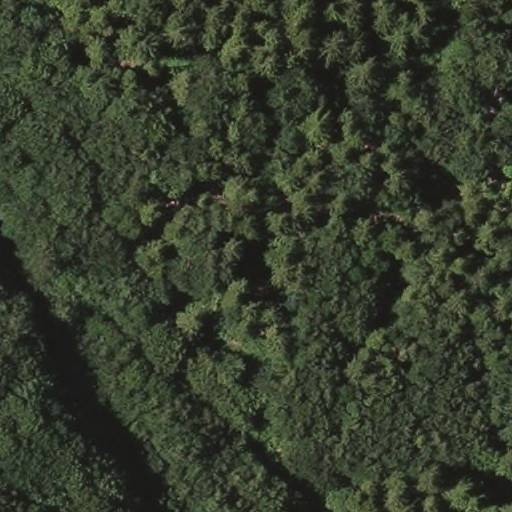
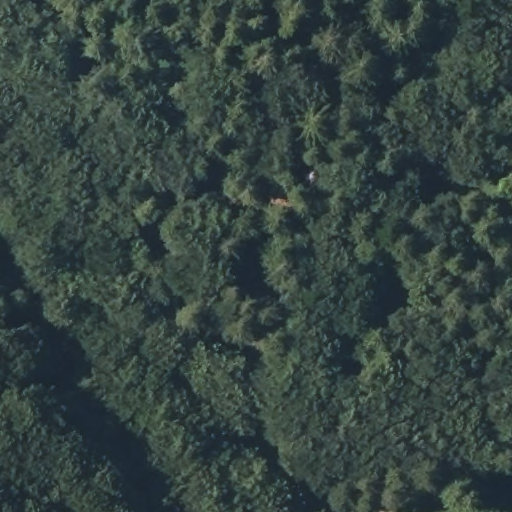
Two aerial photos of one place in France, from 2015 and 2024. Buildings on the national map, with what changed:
[]

